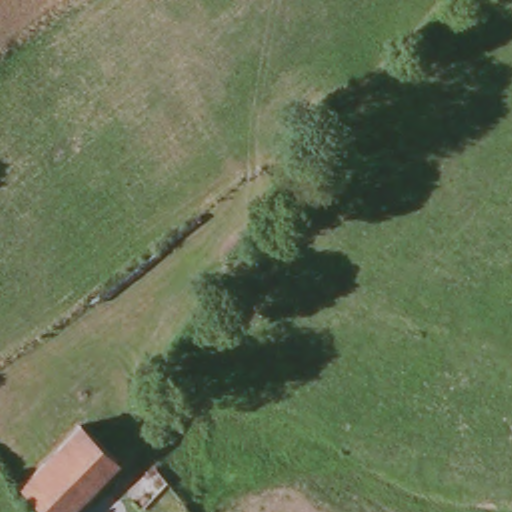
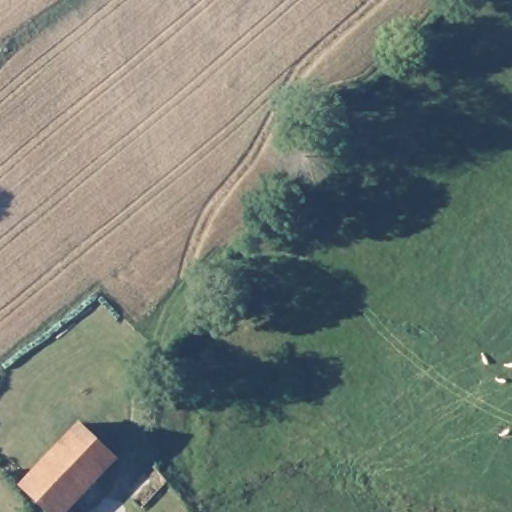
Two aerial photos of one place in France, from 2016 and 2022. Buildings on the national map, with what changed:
unchanged [(117,457),(62,512),(49,512),(20,484),(82,425),(117,457)]

